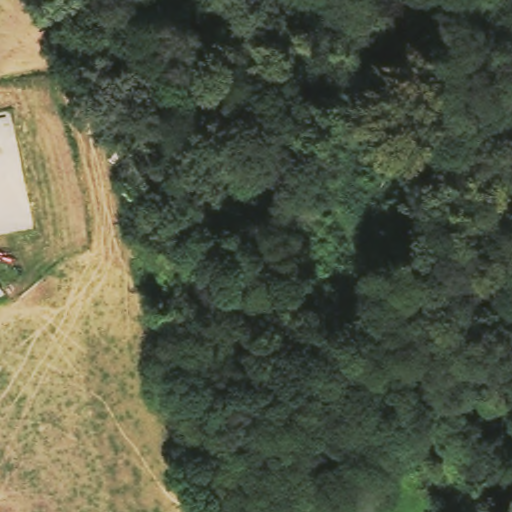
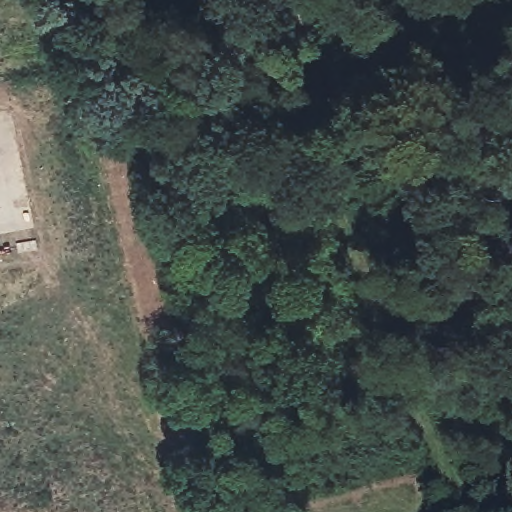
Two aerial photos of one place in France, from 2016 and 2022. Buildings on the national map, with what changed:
[]

